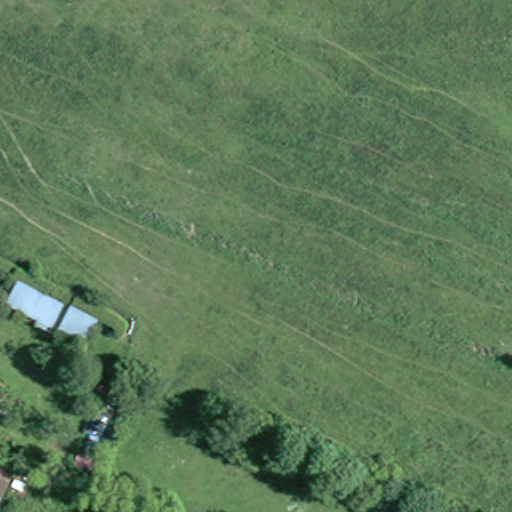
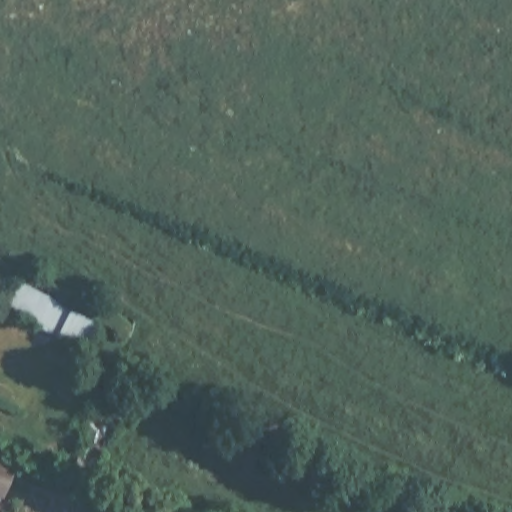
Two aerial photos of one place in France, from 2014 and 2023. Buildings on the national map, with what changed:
unchanged [(21,283),(102,325),(85,353),(6,311),(21,283)]
unchanged [(14,468),(3,492),(0,490),(0,462),(14,468)]

